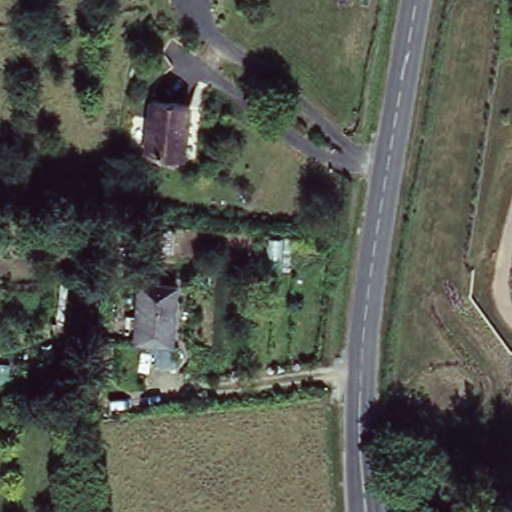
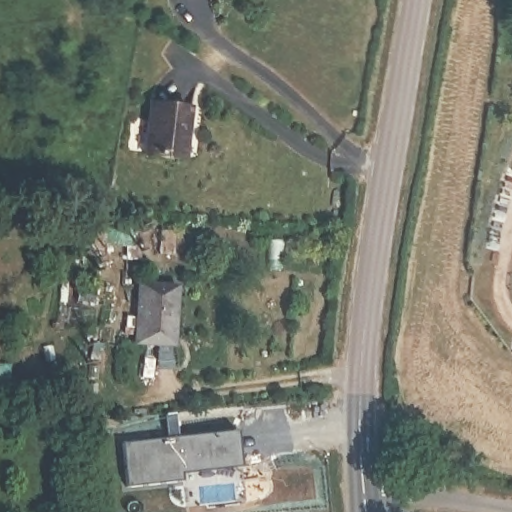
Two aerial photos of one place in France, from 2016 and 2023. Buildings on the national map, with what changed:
unchanged [(191,107),(185,160),(146,155),(151,102),(191,107)]
unchanged [(177,286),(174,345),(136,343),(139,283),(177,286)]
new [(236,432),(239,463),(181,469),(183,481),(127,487),(122,442),(236,432)]
new [(195,485),(242,479),(244,500),(197,505),(195,485)]

